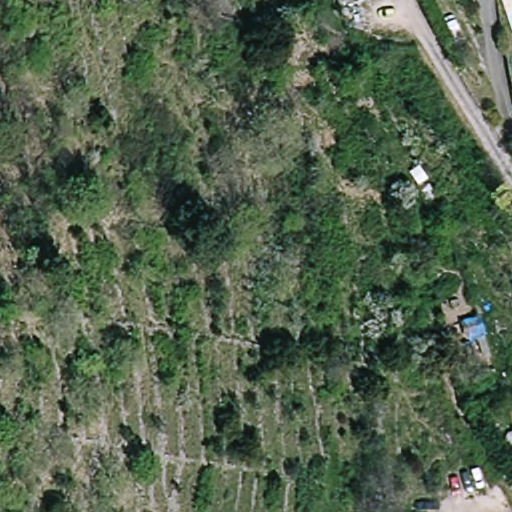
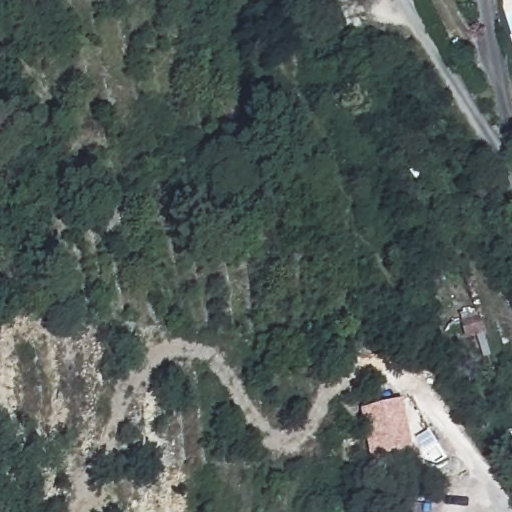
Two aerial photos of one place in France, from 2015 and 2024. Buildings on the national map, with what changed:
unchanged [(463,321),(480,315),(485,331),(468,337),(463,321)]
new [(414,453),(372,460),(362,407),(404,400),(414,453)]

